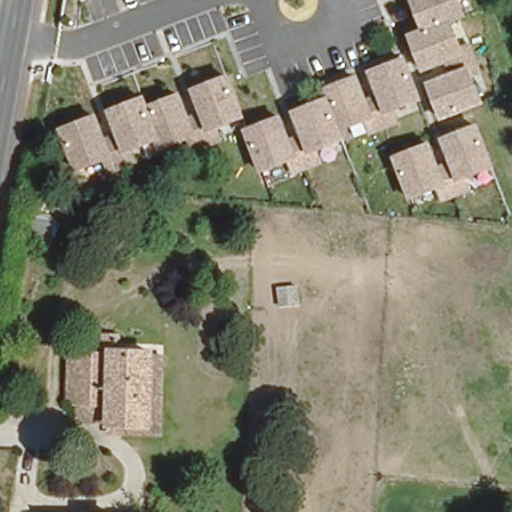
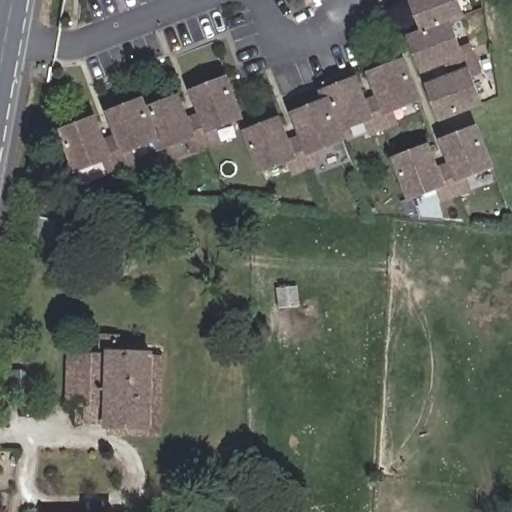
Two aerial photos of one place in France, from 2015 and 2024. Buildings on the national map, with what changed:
unchanged [(406,33),(418,27),(409,0),(461,0),(466,15),(453,20),(466,53),(418,72),(406,33)]
unchanged [(390,110),(393,121),(364,135),(358,123),(342,130),(345,139),(316,152),(318,160),(288,170),(285,164),(258,172),(240,129),(319,97),(316,85),(404,55),(420,99),(390,110)]
unchanged [(438,118),(424,79),(470,64),(483,104),(438,118)]
unchanged [(215,129),(220,139),(178,157),(173,146),(152,155),(147,144),(130,152),(136,164),(106,176),(101,163),(73,172),(57,127),(145,93),(149,102),(225,73),(243,117),(215,129)]
unchanged [(465,178),(468,189),(436,201),(431,192),(404,201),(384,155),(437,134),(477,120),(494,166),(465,178)]
unchanged [(101,433),(101,423),(70,422),(71,405),(63,405),(65,351),(87,352),(88,337),(105,337),(104,352),(147,354),(159,355),(156,435),(145,435),(140,435),(101,433)]
unchanged [(112,511),(125,512),(104,512),(104,511),(112,511)]

